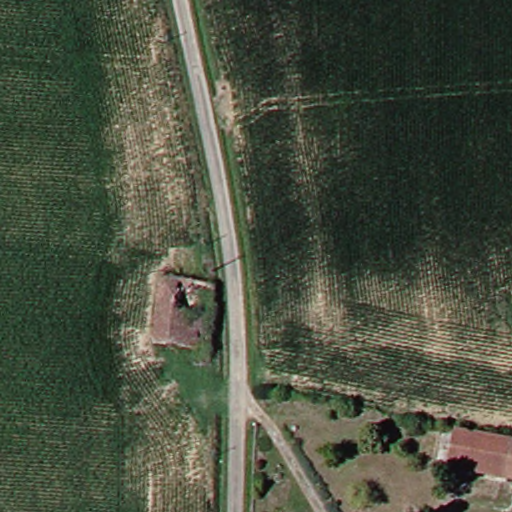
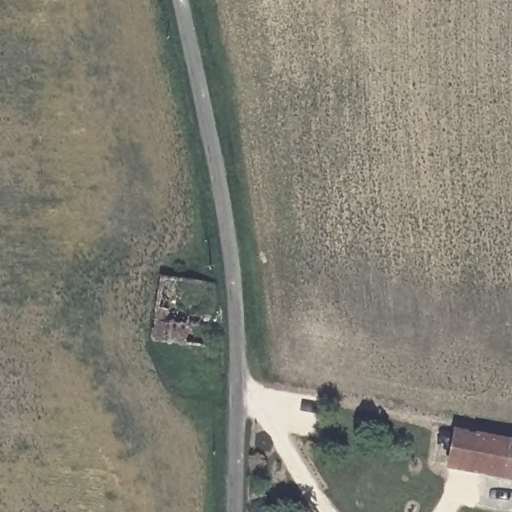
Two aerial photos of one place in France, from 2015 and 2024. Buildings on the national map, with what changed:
unchanged [(434,466),(439,431),(512,444),(512,478),(434,466)]

